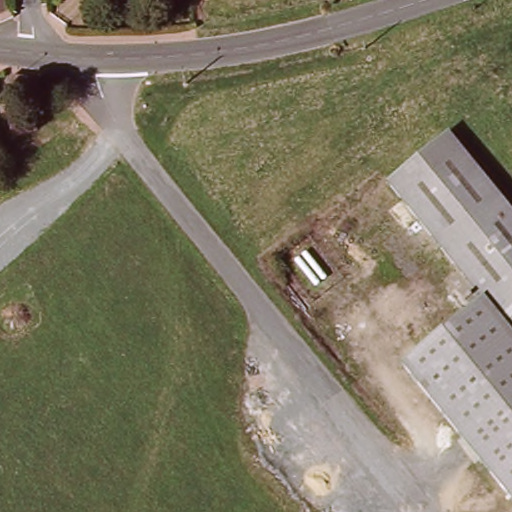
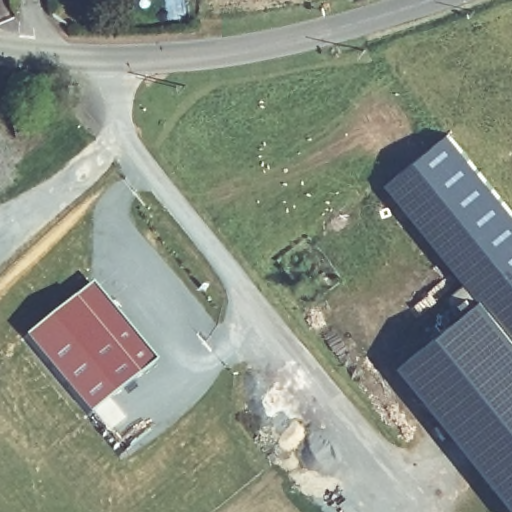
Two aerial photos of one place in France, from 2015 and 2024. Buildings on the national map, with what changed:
unchanged [(49,101),(20,95),(21,85),(51,91),(49,101)]
unchanged [(512,499),(401,362),(461,312),(448,296),(465,282),(388,187),(450,136),(512,213),(512,499)]
new [(85,418),(21,340),(71,300),(89,285),(153,363),(135,378),(85,418)]

